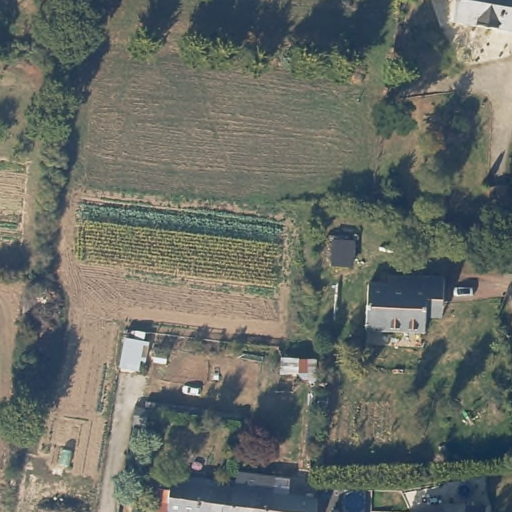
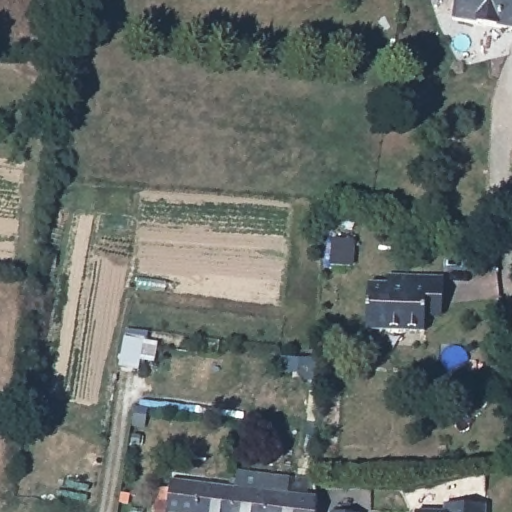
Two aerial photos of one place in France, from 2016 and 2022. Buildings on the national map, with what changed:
unchanged [(453,20),(457,0),(512,0),(512,32),(453,20)]
unchanged [(443,299),(430,299),(425,327),(365,324),(368,279),(386,280),(388,269),(445,273),(443,299)]
unchanged [(234,512),(182,512),(172,510),(172,499),(160,496),(161,484),(174,486),(176,476),(222,481),(226,456),(241,459),(238,484),(234,512)]
unchanged [(317,512),(234,512),(238,484),(273,488),(274,478),(291,480),(290,491),(320,495),(317,512)]
unchanged [(486,512),(464,512),(464,506),(486,508),(486,512)]

